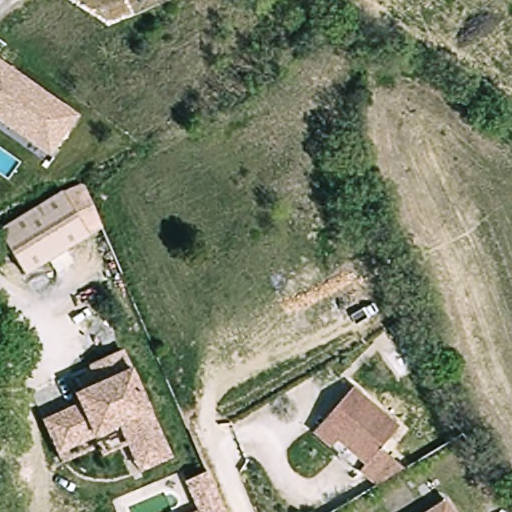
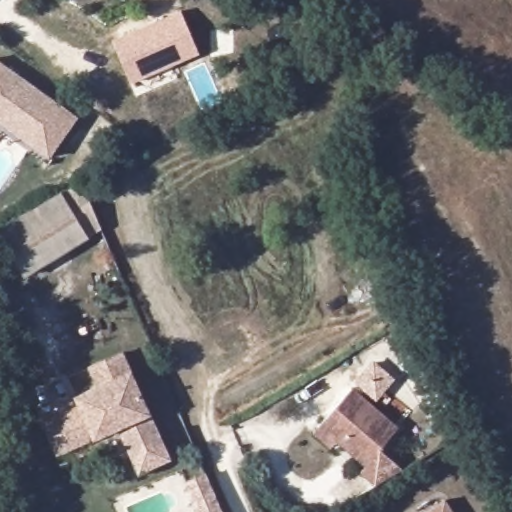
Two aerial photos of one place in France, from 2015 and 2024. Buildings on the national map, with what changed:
new [(181,10),(200,54),(131,83),(113,39),(181,10)]
unchanged [(0,124),(0,61),(79,115),(50,158),(0,124)]
unchanged [(85,187),(105,233),(90,241),(22,275),(0,233),(0,229),(67,195),(85,187)]
unchanged [(137,474),(132,458),(120,426),(73,443),(56,448),(54,439),(45,414),(83,401),(80,391),(90,387),(105,383),(97,362),(131,350),(164,446),(169,462),(137,474)]
unchanged [(330,449),(312,434),(317,428),(350,388),(399,428),(379,451),(404,471),(374,488),(358,473),(364,468),(335,443),(330,449)]
unchanged [(185,482),(208,472),(225,512),(197,512),(185,482)]
unchanged [(446,498),(454,512),(422,512),(446,498)]

